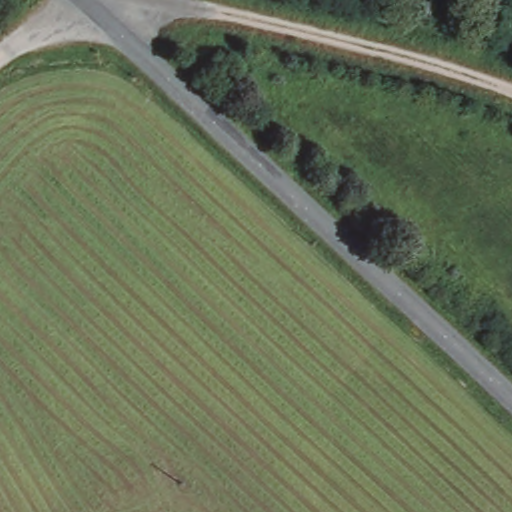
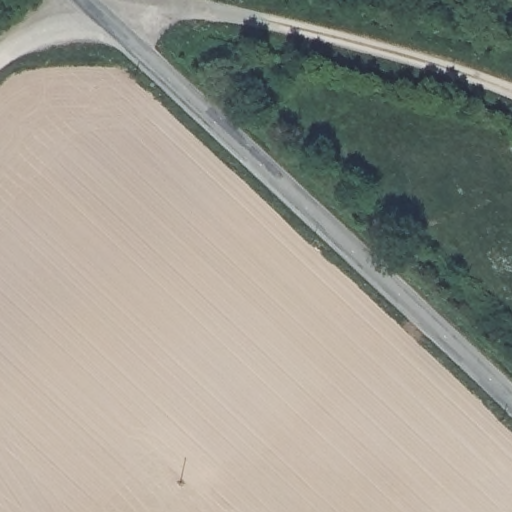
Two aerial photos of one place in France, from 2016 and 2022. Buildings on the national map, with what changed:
[]

